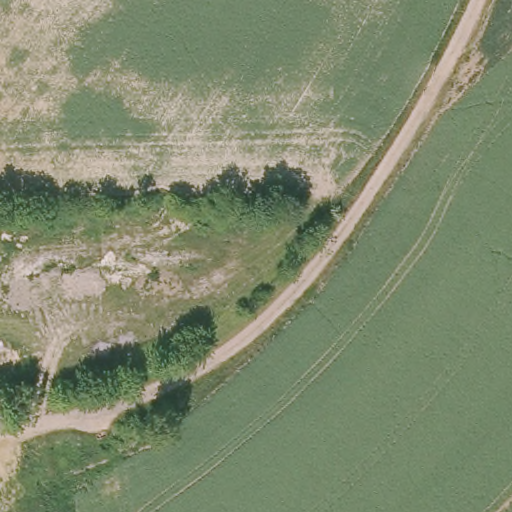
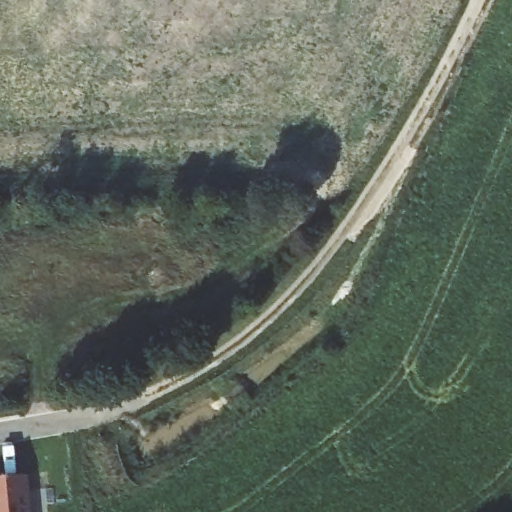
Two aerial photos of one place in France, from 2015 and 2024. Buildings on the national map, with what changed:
new [(23,491),(25,491),(27,512),(0,512),(0,477),(21,476),(23,491)]

